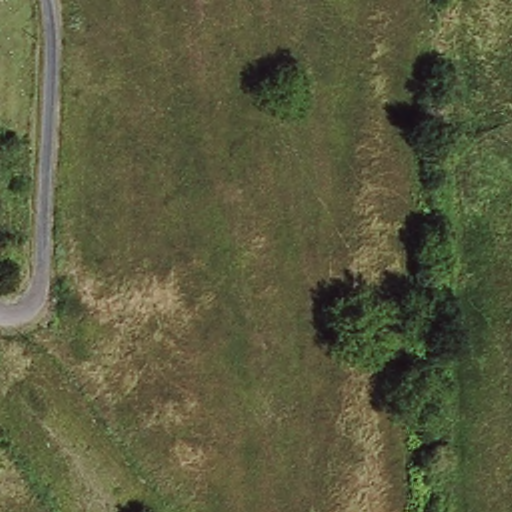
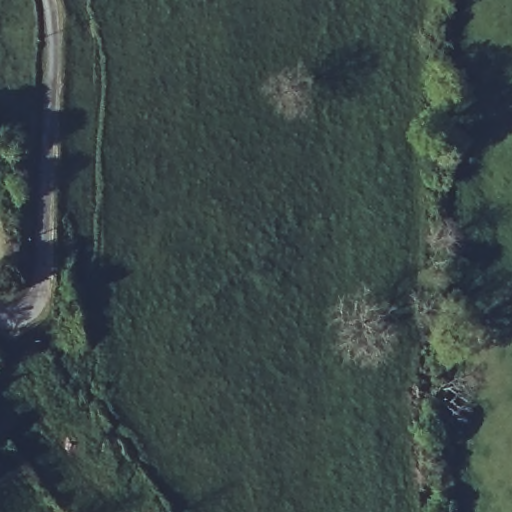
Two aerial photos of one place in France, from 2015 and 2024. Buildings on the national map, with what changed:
[]

